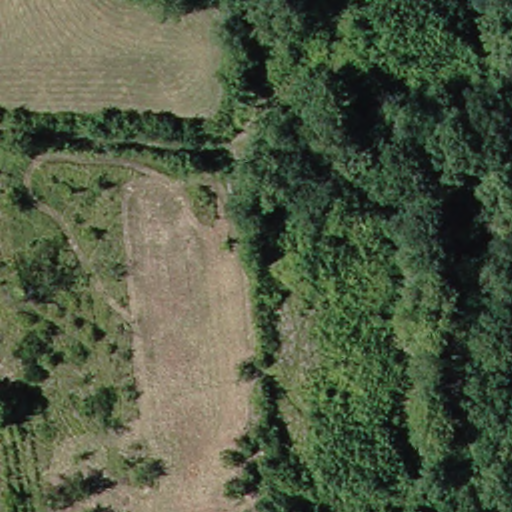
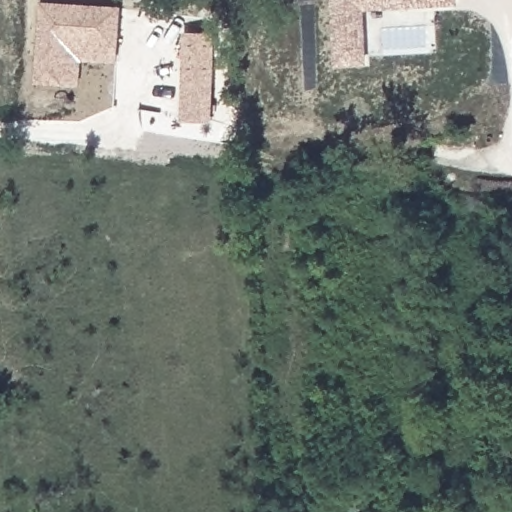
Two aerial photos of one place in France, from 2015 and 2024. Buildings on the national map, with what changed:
new [(331,0),(459,0),(459,6),(366,12),(369,65),(335,67),(331,0)]
new [(119,62),(84,60),(82,86),(37,84),(40,1),(124,6),(119,62)]
new [(216,120),(184,122),(183,32),(216,32),(216,120)]

